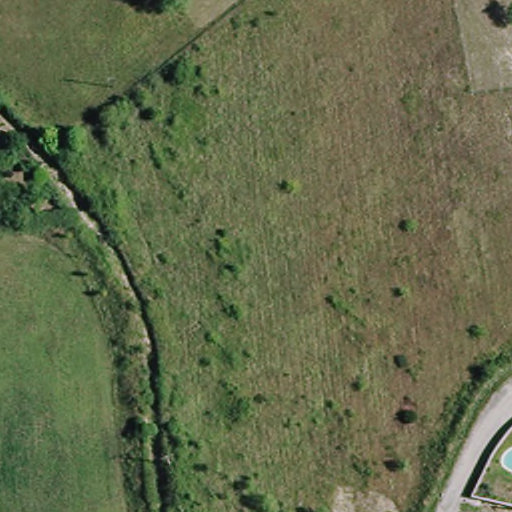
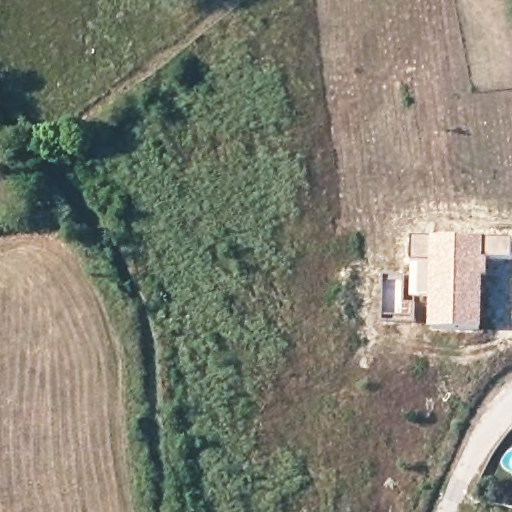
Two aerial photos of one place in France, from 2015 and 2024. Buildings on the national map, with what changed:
new [(428,330),(427,297),(408,296),(409,262),(410,235),(486,237),(512,238),(512,260),(488,259),(483,291),(482,331),(428,330)]

